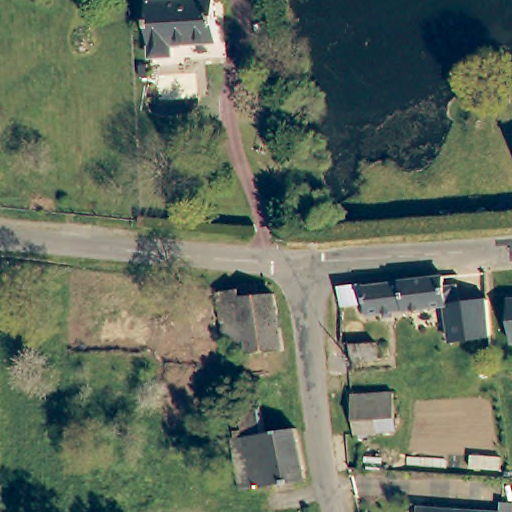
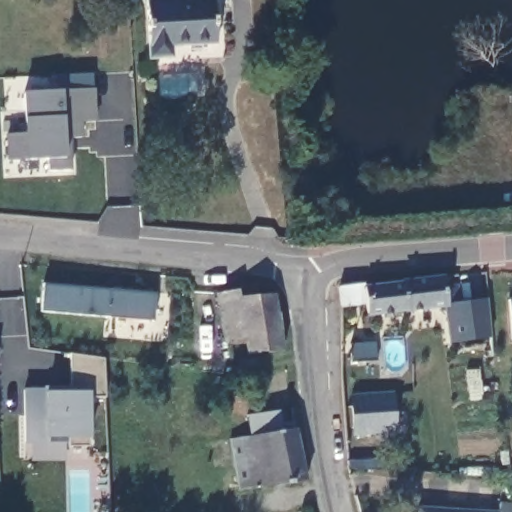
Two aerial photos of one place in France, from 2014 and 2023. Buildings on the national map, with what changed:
unchanged [(192,0),(213,0),(215,42),(169,45),(169,57),(147,58),(144,0),(181,0),(192,0)]
new [(80,121),(81,137),(69,138),(70,169),(46,169),(46,160),(25,160),(7,161),(5,134),(25,133),(22,94),(65,93),(94,88),(95,120),(80,121)]
unchanged [(365,303),(340,306),(338,286),(365,284),(365,288),(445,278),(448,306),(367,317),(365,303)]
unchanged [(283,349),(250,356),(246,342),(227,346),(220,310),(217,293),(256,283),(258,294),(277,290),(273,292),(283,349)]
new [(44,284),(156,294),(153,322),(41,310),(44,284)]
new [(459,284),(461,300),(486,299),(491,338),(449,344),(445,307),(448,306),(446,285),(459,284)]
unchanged [(512,303),(512,321),(511,304),(512,303)]
unchanged [(341,352),(365,349),(367,366),(342,368),(341,352)]
new [(104,359),(106,397),(87,396),(90,446),(69,447),(68,438),(47,438),(47,443),(23,443),(21,388),(70,387),(70,353),(104,359)]
unchanged [(392,396),(394,418),(376,419),(376,431),(355,432),(351,392),(392,390),(392,396)]
unchanged [(240,496),(231,445),(244,443),(240,421),(293,411),(305,484),(240,496)]

